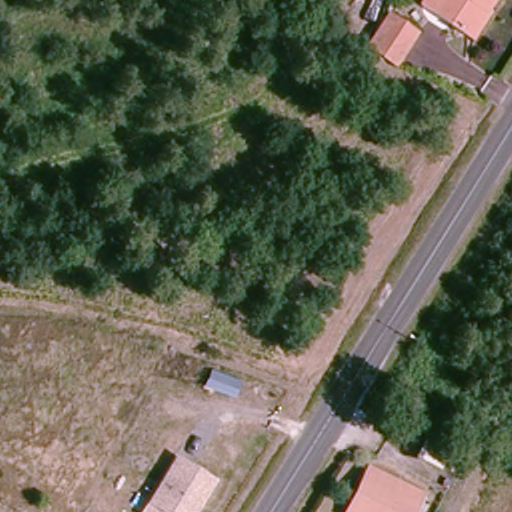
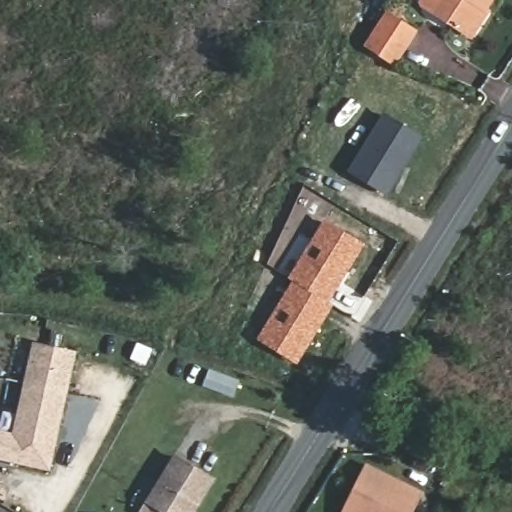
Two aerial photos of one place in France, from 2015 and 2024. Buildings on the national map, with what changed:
unchanged [(489,13),(469,41),(415,5),(419,0),(493,0),(486,10),(489,13)]
unchanged [(382,14),(410,30),(390,61),(364,45),(382,14)]
new [(383,114),(421,135),(386,194),(348,171),(383,114)]
new [(288,278),(324,223),(363,243),(330,301),(335,304),(297,364),(257,339),(293,282),(288,278)]
new [(0,459),(0,428),(11,430),(32,343),(76,351),(47,469),(0,459)]
unchanged [(143,502),(149,493),(170,457),(202,476),(208,479),(188,512),(137,512),(143,502)]
unchanged [(353,483),(359,472),(361,467),(416,497),(414,501),(412,504),(408,512),(338,512),(353,483)]

